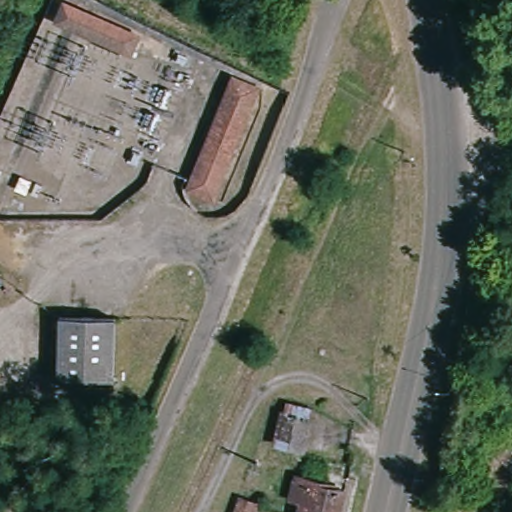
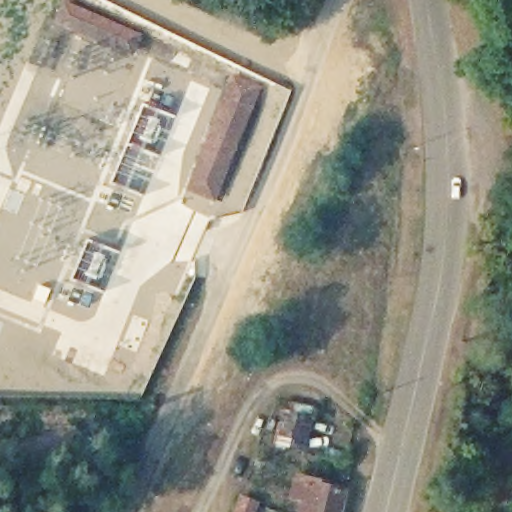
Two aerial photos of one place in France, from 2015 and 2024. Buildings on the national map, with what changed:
unchanged [(129,56),(89,39),(52,23),(62,1),(99,17),(139,35),(129,56)]
unchanged [(229,75),(259,87),(212,201),(184,190),(229,75)]
demolished [(112,319),(111,380),(57,377),(58,317),(112,319)]
unchanged [(311,407),(302,448),(274,441),(283,400),(311,407)]
unchanged [(343,491),(338,512),(297,512),(300,500),(289,496),(294,480),(343,491)]
unchanged [(239,497),(256,504),(253,512),(234,512),(239,497)]

